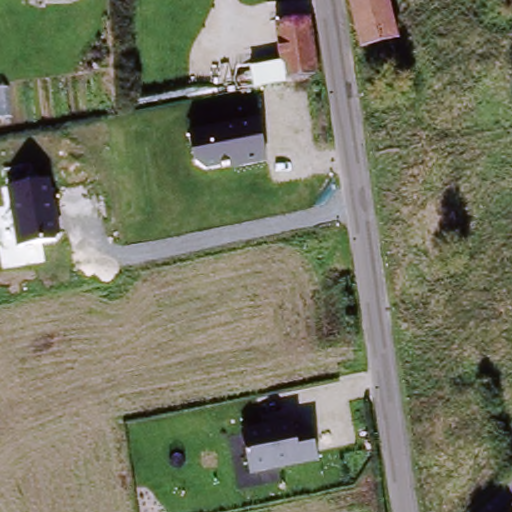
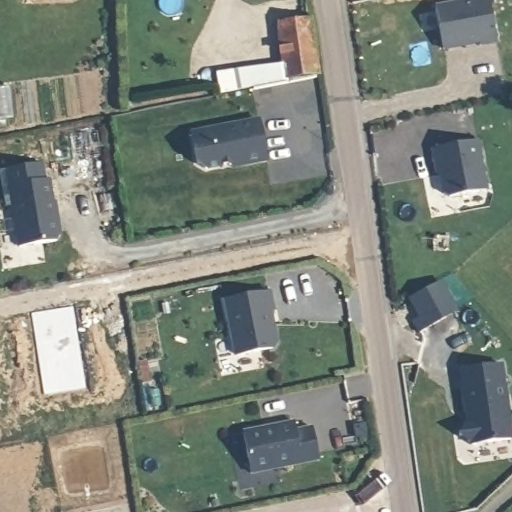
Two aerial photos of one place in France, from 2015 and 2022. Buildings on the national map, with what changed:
demolished [(352,37),(354,0),(384,0),(382,40),(352,37)]
new [(480,49),(480,44),(444,51),(435,5),(469,0),(489,0),(497,45),(480,49)]
unchanged [(215,72),(260,64),(286,62),(282,16),(313,15),(319,77),(288,84),(262,89),(220,95),(215,72)]
unchanged [(266,164),(242,170),(240,163),(197,171),(190,135),(259,122),(266,164)]
new [(448,197),(442,194),(439,175),(435,176),(431,152),(479,143),(487,192),(448,197)]
unchanged [(8,186),(49,180),(60,240),(17,246),(8,186)]
new [(425,329),(409,300),(442,281),(458,311),(425,329)]
new [(235,356),(223,300),(271,291),(276,310),(272,310),(280,343),(274,348),(235,356)]
new [(470,445),(460,433),(467,426),(461,370),(502,365),(512,427),(512,440),(470,445)]
unchanged [(293,423),(295,432),(312,430),(317,461),(250,473),(242,434),(293,423)]

